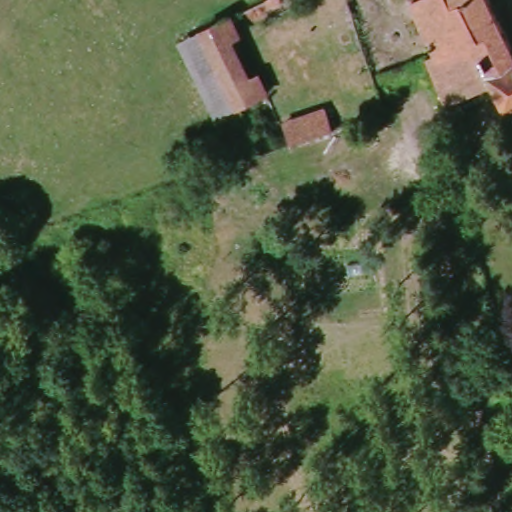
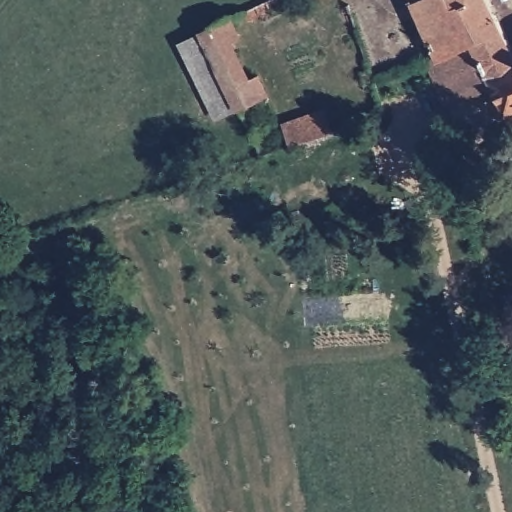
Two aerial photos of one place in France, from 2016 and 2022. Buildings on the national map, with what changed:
unchanged [(484,0),(512,60),(512,65),(477,81),(463,50),(432,60),(405,0),(484,0)]
unchanged [(225,43),(217,49),(232,83),(242,79),(251,102),(214,119),(180,40),(215,22),(225,43)]
unchanged [(505,119),(490,91),(442,111),(421,65),(432,60),(463,50),(477,81),(512,65),(512,115),(505,119)]
unchanged [(288,146),(283,126),(325,113),(332,132),(288,146)]

